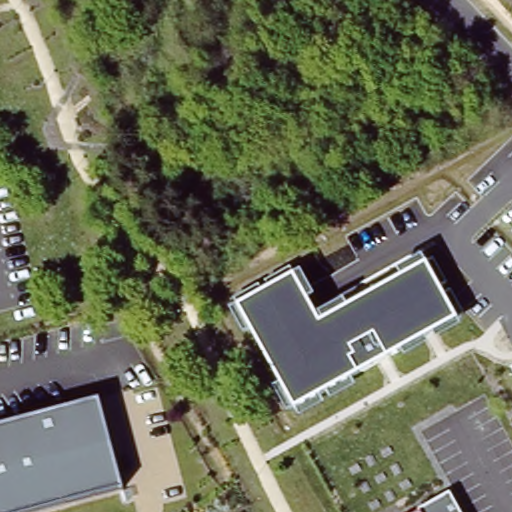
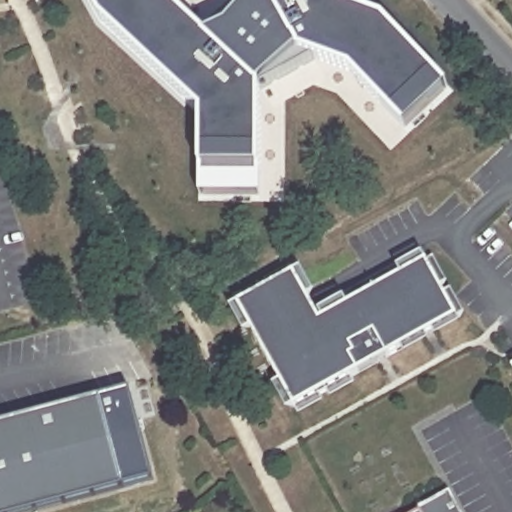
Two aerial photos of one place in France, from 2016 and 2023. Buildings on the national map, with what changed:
new [(350,74),(315,60),(257,89),(258,169),(257,197),(198,197),(200,168),(202,114),(102,22),(89,0),(165,0),(199,33),(244,0),(337,0),(340,4),(385,21),(447,88),(405,131),(350,74)]
unchanged [(294,272),(320,320),(428,260),(460,317),(295,409),(237,304),(294,272)]
unchanged [(100,399),(122,486),(28,512),(0,512),(0,425),(100,399)]
unchanged [(448,491),(460,512),(419,512),(417,509),(448,491)]

